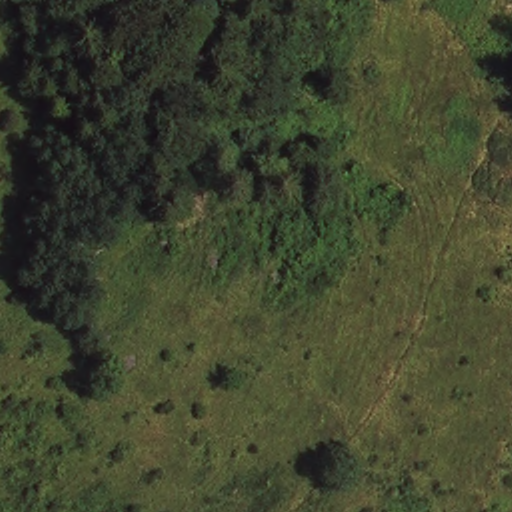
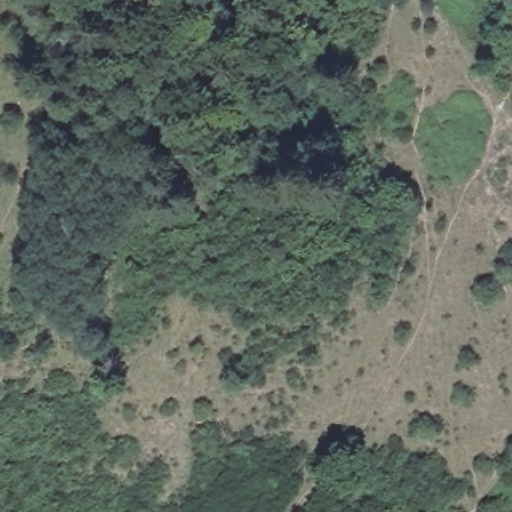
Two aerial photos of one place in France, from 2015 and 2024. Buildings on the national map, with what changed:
[]

